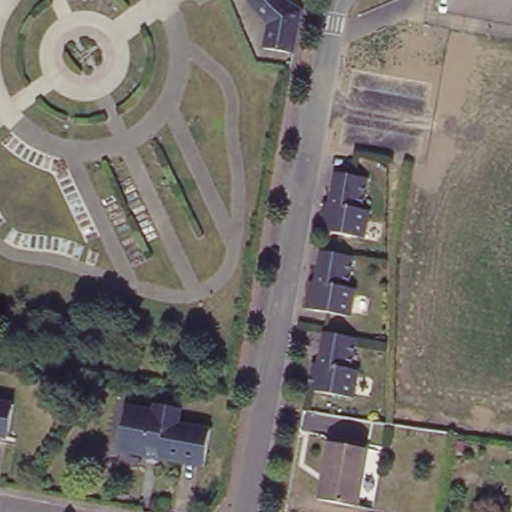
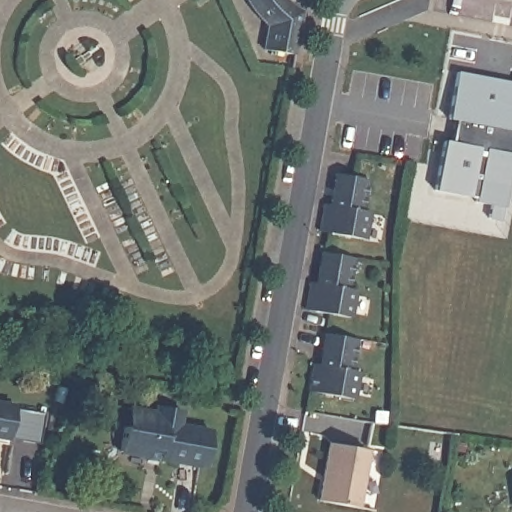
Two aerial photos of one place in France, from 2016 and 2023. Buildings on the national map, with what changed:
unchanged [(300,8),(293,52),(260,46),(263,20),(244,5),(242,0),(283,0),(291,4),(300,8)]
new [(512,87),(512,135),(500,200),(461,194),(430,177),(450,75),(512,87)]
unchanged [(317,225),(320,200),(328,201),(335,170),(342,171),(363,175),(360,207),(368,209),(365,235),(334,229),(317,225)]
unchanged [(348,256),(343,288),(352,290),(348,315),(317,308),(302,306),(306,277),(312,277),(317,250),(326,252),(348,256)]
unchanged [(306,355),(318,355),(322,332),(356,338),(353,362),(361,366),(355,395),(301,386),(306,355)]
unchanged [(11,438),(0,436),(0,400),(14,403),(11,438)]
unchanged [(147,412),(147,405),(174,410),(174,425),(205,431),(202,467),(119,455),(122,410),(147,412)]
unchanged [(360,451),(356,506),(322,501),(325,446),(360,451)]

